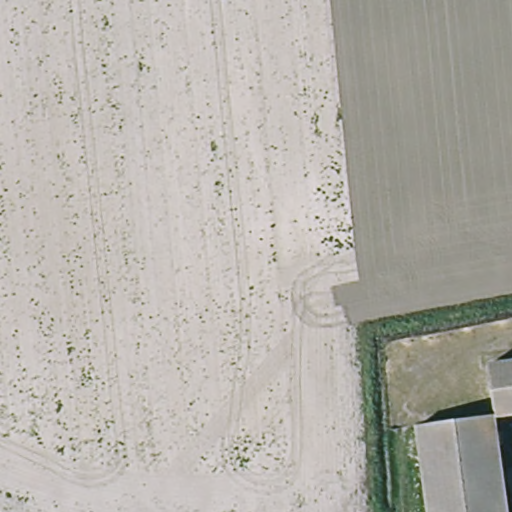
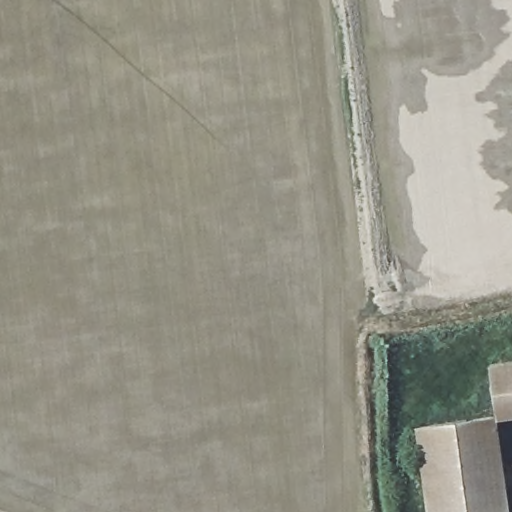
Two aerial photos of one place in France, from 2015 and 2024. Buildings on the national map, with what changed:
unchanged [(512,361),(512,415),(496,417),(490,364),(512,361)]
unchanged [(427,512),(416,425),(496,417),(508,512),(427,512)]

